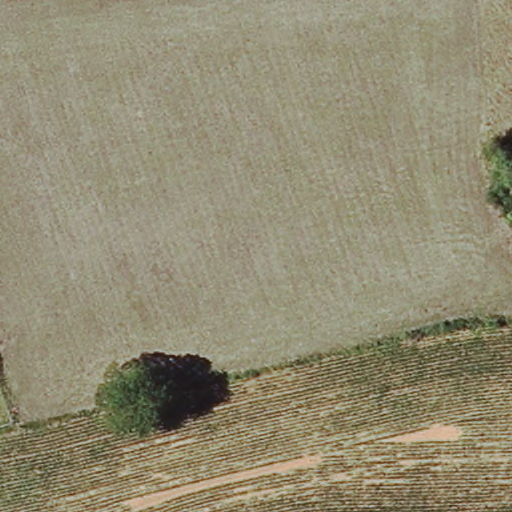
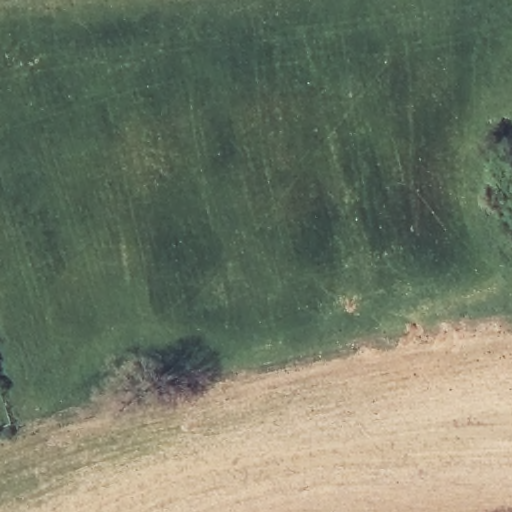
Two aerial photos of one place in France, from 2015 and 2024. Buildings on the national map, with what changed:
[]

